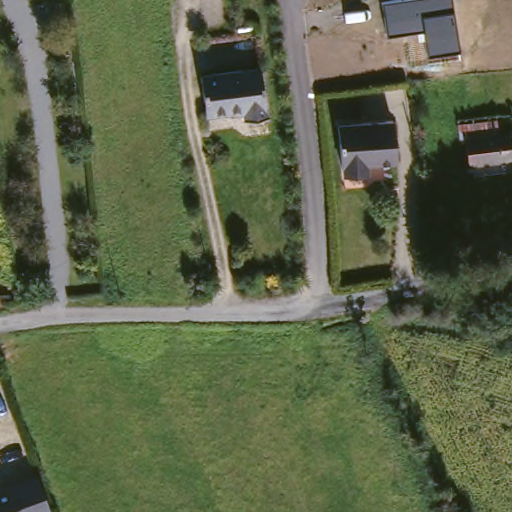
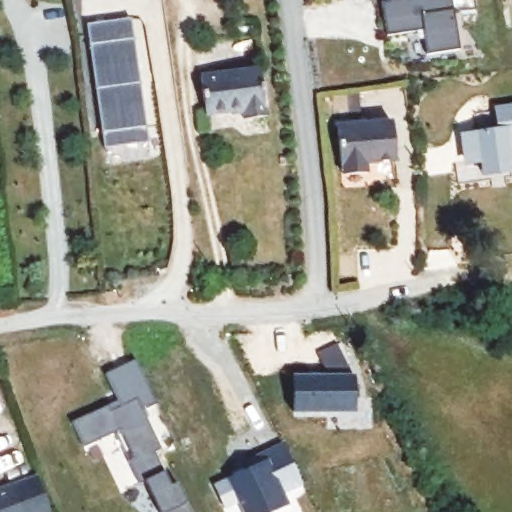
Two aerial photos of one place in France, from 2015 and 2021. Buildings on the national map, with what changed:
unchanged [(426,55),(421,30),(386,36),(381,2),(399,0),(452,0),(459,50),(426,55)]
new [(105,150),(102,135),(90,45),(87,25),(131,19),(135,38),(147,128),(149,143),(105,150)]
unchanged [(267,122),(243,125),(241,115),(206,119),(201,80),(261,73),(267,122)]
new [(483,170),(482,160),(468,162),(464,133),(499,128),(496,109),(512,107),(512,156),(510,156),(511,165),(512,170),(484,174),(483,170)]
demolished [(465,140),(460,140),(459,126),(496,121),(497,135),(512,134),(512,159),(468,164),(465,140)]
unchanged [(391,124),(395,164),(364,167),(364,176),(341,179),(336,129),(391,124)]
new [(292,377),(328,378),(318,355),(339,345),(353,379),(355,379),(354,413),(290,411),(292,377)]
new [(104,372),(135,357),(156,402),(143,408),(161,446),(154,450),(170,483),(177,480),(193,512),(162,512),(145,479),(138,482),(127,459),(133,456),(119,428),(83,446),(71,420),(107,403),(117,398),(104,372)]
new [(246,459),(282,440),(302,480),(282,490),(287,501),(265,512),(246,512),(239,498),(225,505),(214,483),(249,466),(246,459)]
unchanged [(54,511),(52,512),(0,512),(0,490),(40,474),(42,480),(54,511)]

